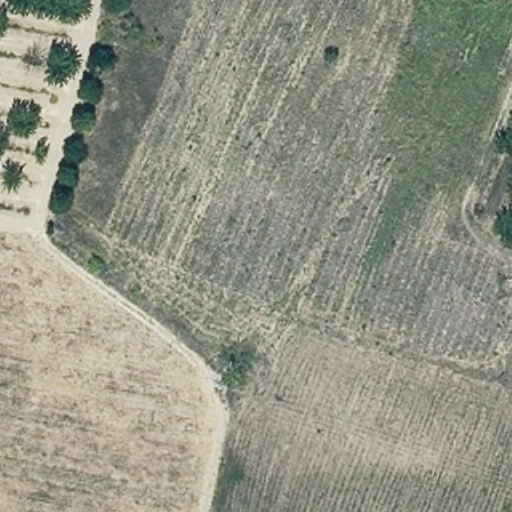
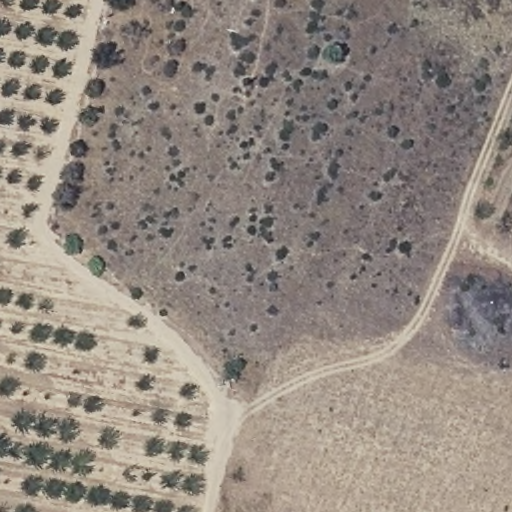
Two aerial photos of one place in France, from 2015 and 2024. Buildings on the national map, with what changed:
[]

